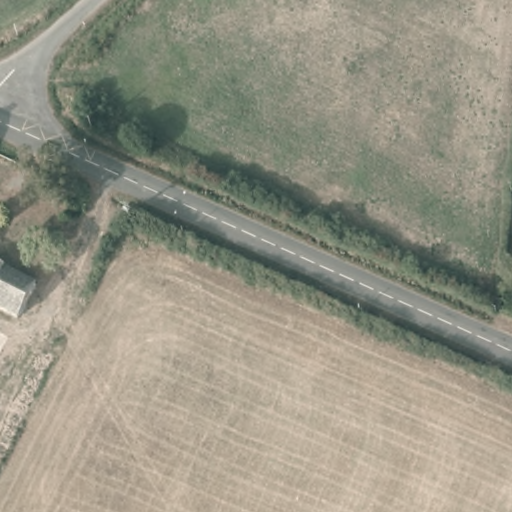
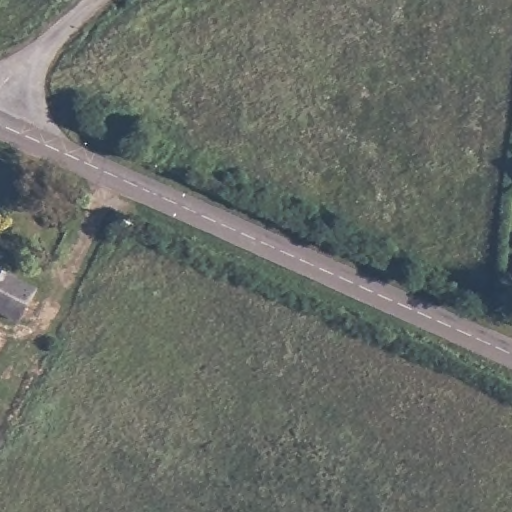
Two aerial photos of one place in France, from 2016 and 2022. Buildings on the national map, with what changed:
unchanged [(33,279),(12,314),(0,309),(0,262),(33,279)]

